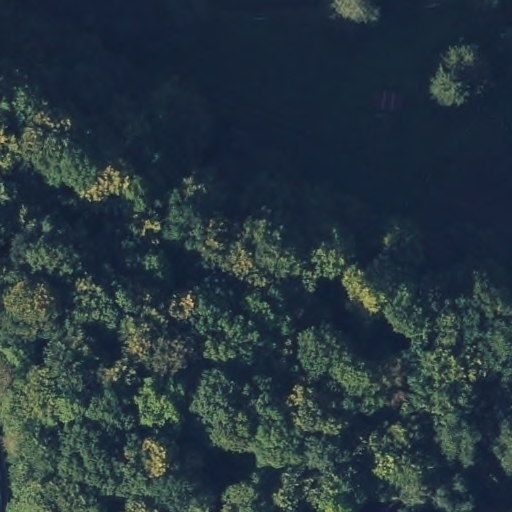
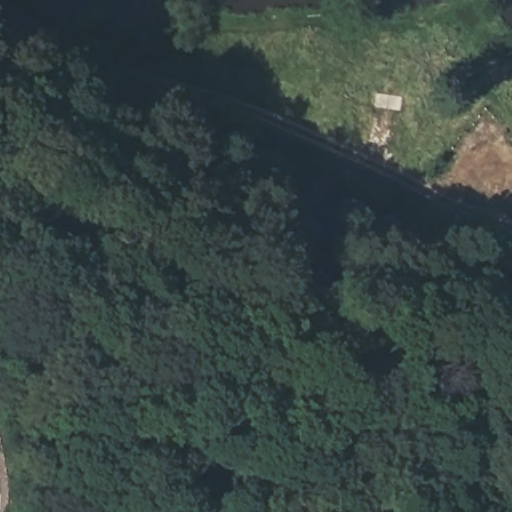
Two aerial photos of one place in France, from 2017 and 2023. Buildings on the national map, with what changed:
unchanged [(400,97),(399,114),(377,112),(377,96),(400,97)]

